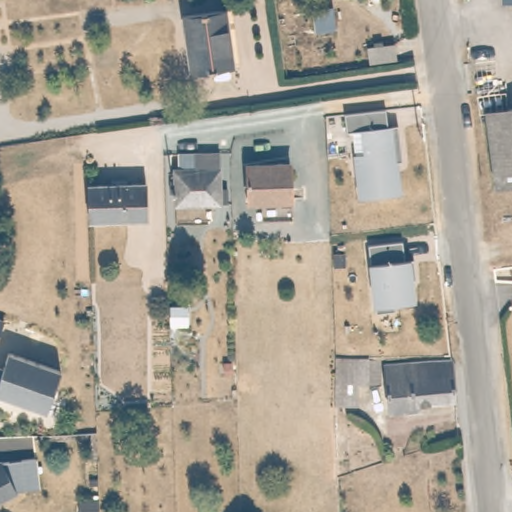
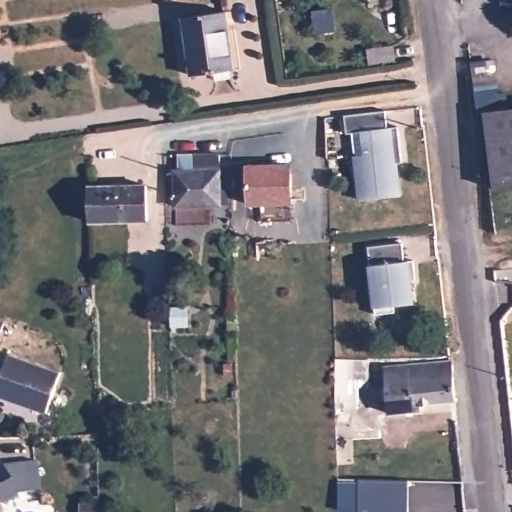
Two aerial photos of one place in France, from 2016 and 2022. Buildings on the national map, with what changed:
unchanged [(229,28),(225,29),(230,66),(189,71),(181,14),(226,8),(229,28)]
unchanged [(397,59),(369,62),(367,46),(395,43),(397,59)]
unchanged [(392,124),(402,123),(406,159),(397,160),(398,168),(402,172),(404,193),(364,199),(359,154),(369,153),(366,129),(350,132),(348,114),(390,107),(392,124)]
unchanged [(486,113),(512,110),(512,186),(495,188),(486,113)]
unchanged [(220,206),(176,206),(175,171),(195,170),(195,156),(220,155),(220,206)]
unchanged [(291,203),(248,205),(247,166),(288,164),(291,203)]
unchanged [(144,185),(145,220),(88,221),(87,186),(144,185)]
unchanged [(370,265),(369,247),(402,243),(405,261),(412,259),(416,303),(396,305),(396,311),(375,313),(374,308),(370,265)]
unchanged [(4,323),(0,335),(0,321),(4,323)]
unchanged [(7,371),(13,355),(64,373),(51,413),(30,406),(32,403),(20,398),(18,402),(0,395),(0,369),(7,371)]
unchanged [(340,358),(386,360),(386,386),(341,385),(340,358)]
unchanged [(425,403),(425,410),(395,413),(390,366),(454,360),(459,400),(425,403)]
unchanged [(5,503),(0,502),(0,467),(5,464),(21,495),(5,503)]
new [(359,512),(359,510),(338,510),(338,479),(408,480),(408,512),(359,512)]

